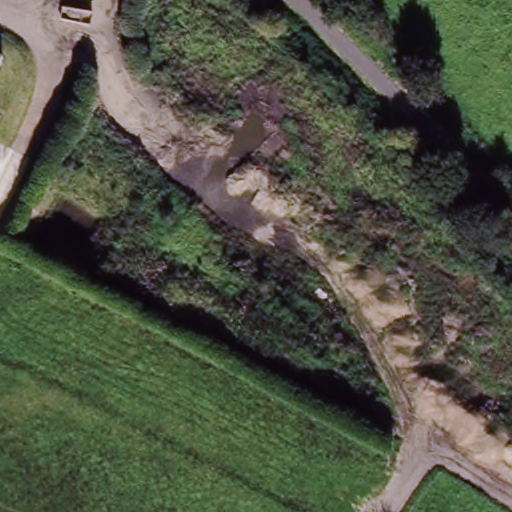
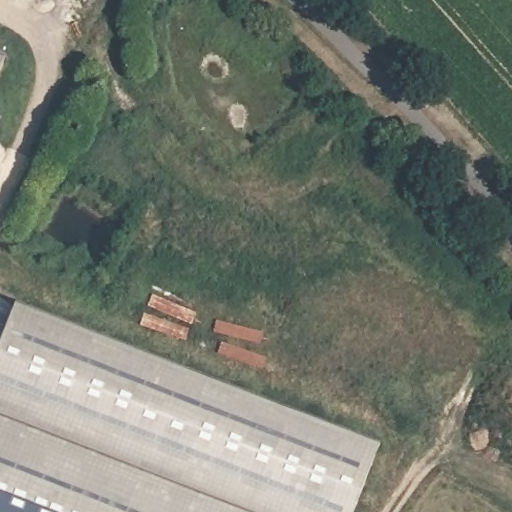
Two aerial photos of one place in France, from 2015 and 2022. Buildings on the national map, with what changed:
new [(355,512),(0,512),(0,346),(14,308),(379,448),(355,512)]

